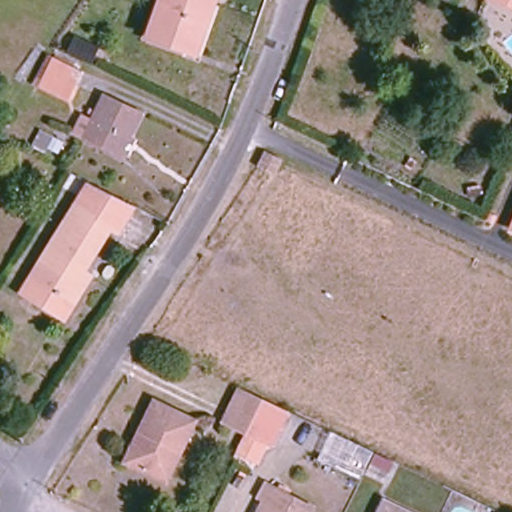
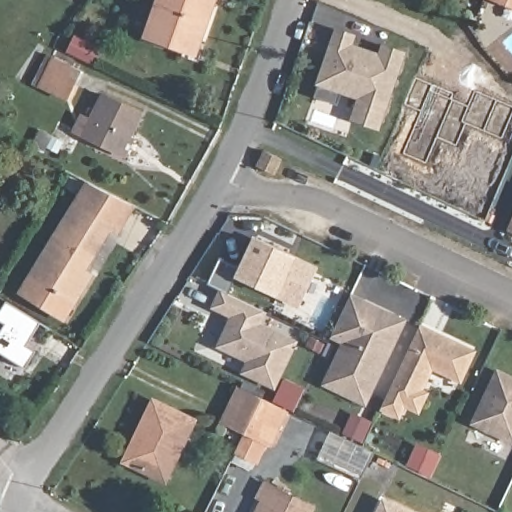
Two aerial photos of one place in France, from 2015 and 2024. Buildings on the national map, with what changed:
unchanged [(146,36),(159,0),(214,0),(195,53),(146,36)]
unchanged [(512,5),(499,0),(512,0),(512,5)]
new [(341,95),(338,106),(313,97),(333,27),(356,35),(352,45),(377,52),(380,43),(406,52),(380,132),(348,121),(355,99),(341,95)]
unchanged [(37,88),(51,57),(82,72),(67,102),(37,88)]
unchanged [(74,133),(81,117),(90,121),(102,96),(141,115),(130,138),(134,139),(125,157),(125,156),(74,133)]
unchanged [(117,233),(110,229),(101,224),(75,267),(84,272),(90,276),(65,319),(21,293),(88,184),(134,206),(117,233)]
unchanged [(512,213),(512,231),(505,229),(512,213)]
new [(252,235),(318,266),(300,309),(235,277),(252,235)]
new [(298,341),(275,390),(240,374),(245,362),(215,347),(230,317),(211,308),(219,290),(266,313),(262,324),(298,341)]
new [(366,406),(321,385),(341,343),(330,338),(352,294),(407,320),(366,406)]
new [(25,345),(35,352),(25,368),(0,352),(0,332),(5,325),(0,321),(0,310),(6,301),(41,323),(25,345)]
new [(462,384),(432,371),(425,390),(430,392),(420,415),(405,408),(400,419),(381,410),(420,324),(477,350),(462,384)]
new [(495,368),(512,376),(512,444),(470,424),(495,368)]
unchanged [(270,445),(245,433),(222,422),(239,389),(261,400),(287,412),(270,445)]
unchanged [(140,429),(154,402),(195,422),(165,482),(134,467),(124,462),(140,429)]
new [(418,445),(441,456),(431,476),(409,465),(418,445)]
unchanged [(318,462),(323,451),(365,472),(360,483),(318,462)]
unchanged [(261,499),(268,486),(312,509),(311,512),(261,512),(266,502),(261,499)]
unchanged [(379,512),(384,502),(406,512),(379,512)]

